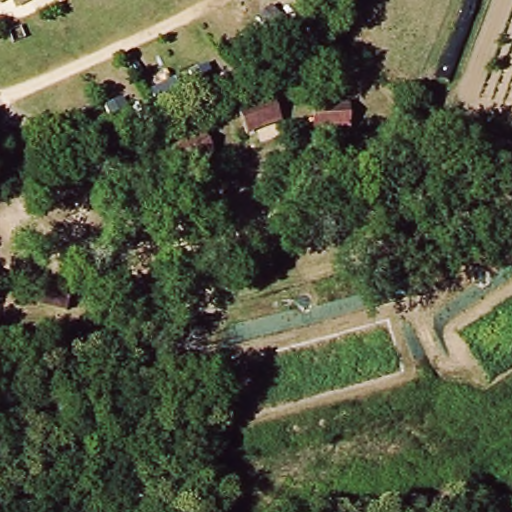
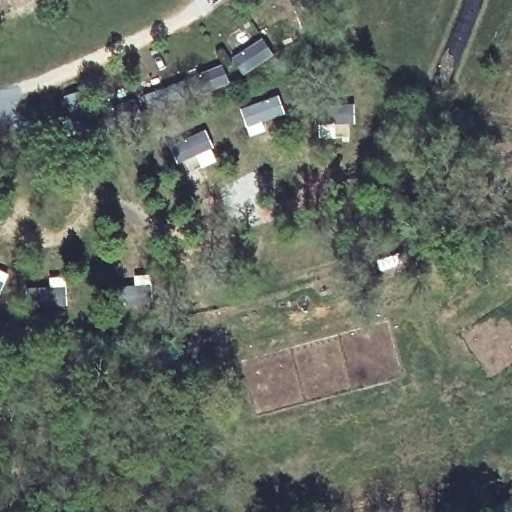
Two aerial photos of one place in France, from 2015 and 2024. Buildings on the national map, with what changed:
unchanged [(15,16),(9,2),(0,7),(0,0),(28,0),(30,7),(15,16)]

